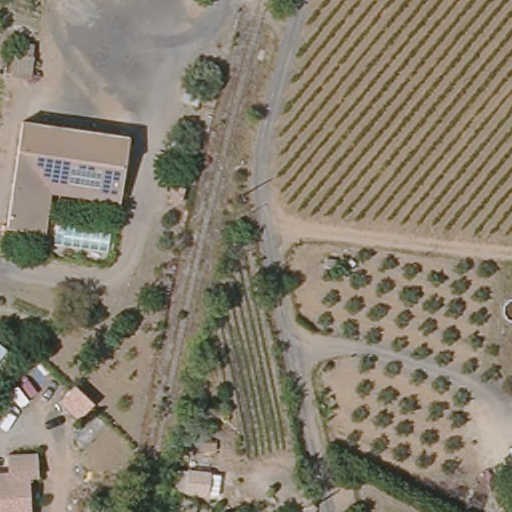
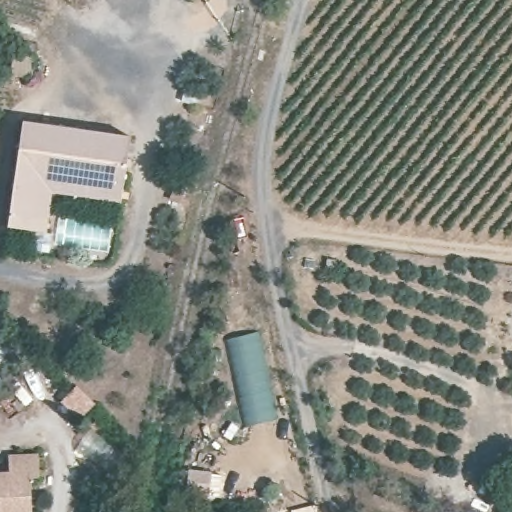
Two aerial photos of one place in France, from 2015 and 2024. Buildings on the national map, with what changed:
unchanged [(41,81),(24,78),(28,59),(43,61),(41,81)]
unchanged [(35,225),(8,220),(28,117),(53,121),(44,174),(35,225)]
unchanged [(130,135),(122,189),(44,174),(53,121),(130,135)]
unchanged [(51,188),(45,227),(35,225),(44,174),(122,189),(121,199),(54,188),(51,188)]
new [(224,339),(256,331),(275,419),(245,427),(224,339)]
unchanged [(4,473),(9,448),(41,451),(41,480),(30,481),(30,512),(0,512),(0,473),(4,473)]
unchanged [(208,493),(184,492),(187,470),(210,473),(208,493)]

